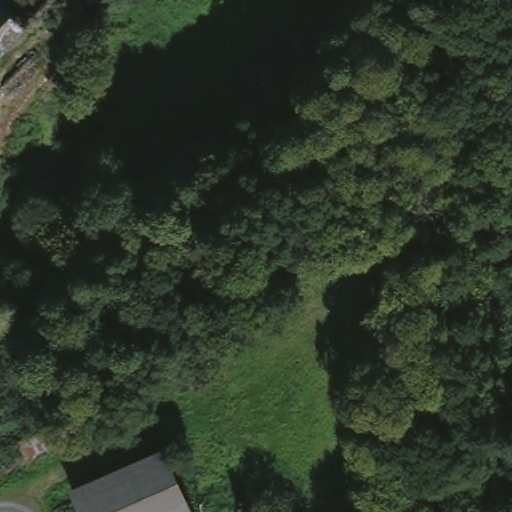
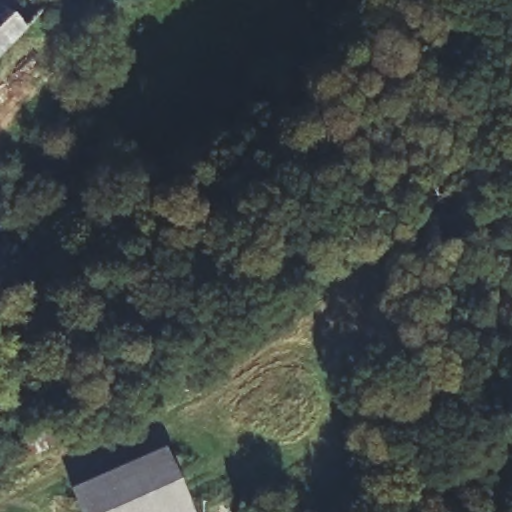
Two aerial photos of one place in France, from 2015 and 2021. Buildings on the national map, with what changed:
unchanged [(33,22),(0,57),(0,6),(6,0),(8,0),(33,22)]
unchanged [(61,452),(0,480),(0,452),(47,430),(61,452)]
unchanged [(203,512),(83,512),(70,487),(170,442),(203,512)]

